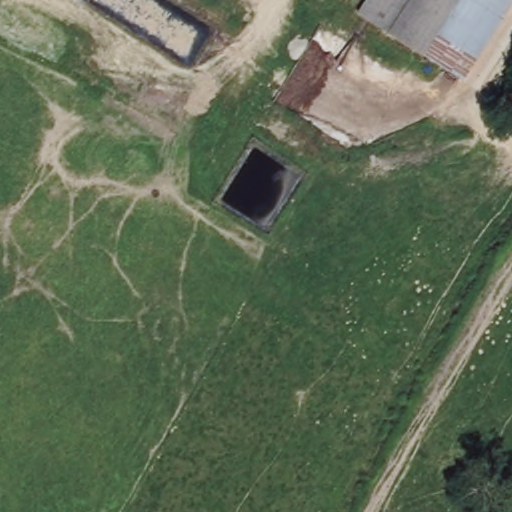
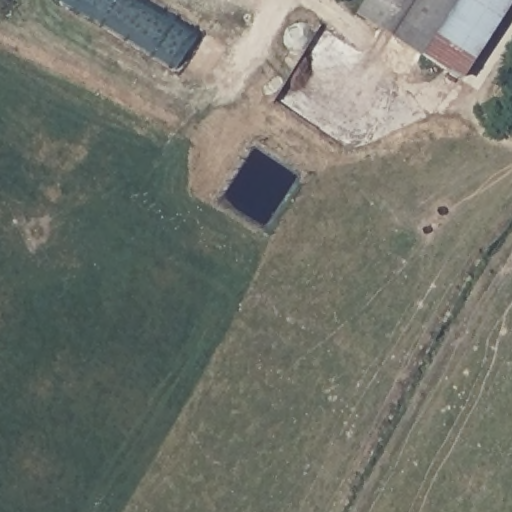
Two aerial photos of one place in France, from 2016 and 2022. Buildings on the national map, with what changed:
unchanged [(431,36),(418,55),(402,44),(355,13),(364,0),(455,0),(431,36)]
unchanged [(496,18),(491,26),(484,37),(470,59),(431,36),(455,0),(468,0),(496,18)]
unchanged [(496,18),(468,0),(510,0),(496,18)]
unchanged [(418,55),(431,36),(470,59),(458,80),(418,55)]

